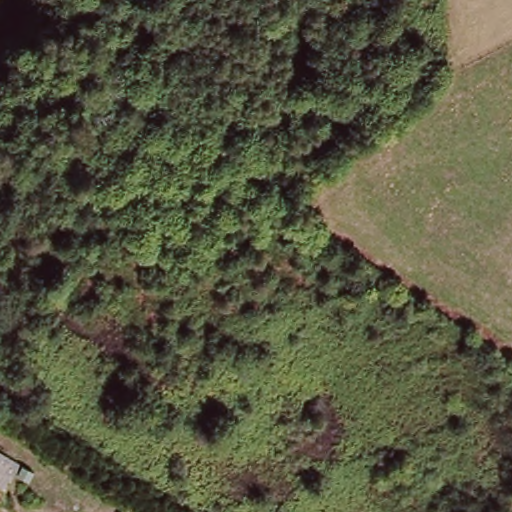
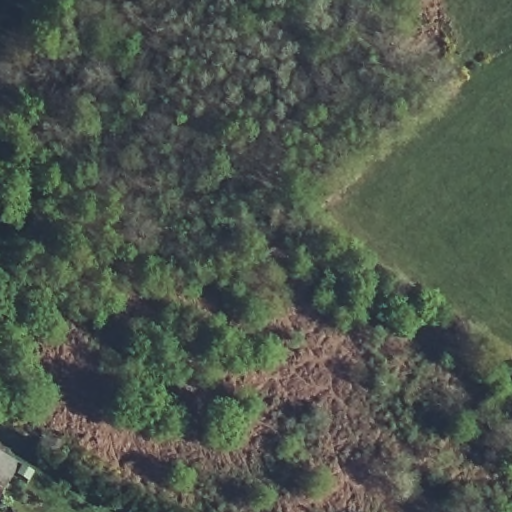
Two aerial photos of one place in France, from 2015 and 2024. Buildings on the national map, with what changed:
unchanged [(24,462),(3,502),(0,500),(0,448),(24,462)]

